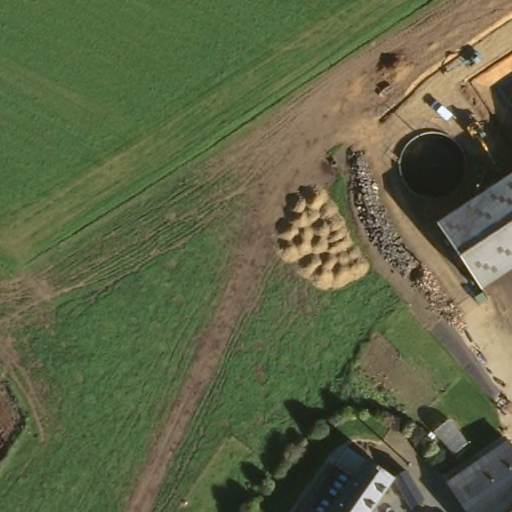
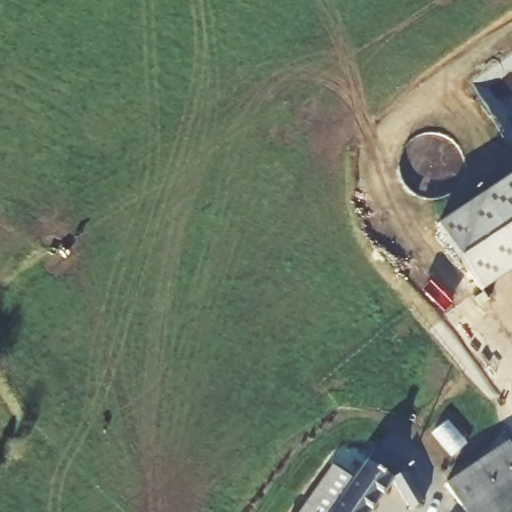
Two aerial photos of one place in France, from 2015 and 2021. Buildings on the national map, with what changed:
unchanged [(468,258),(441,216),(512,171),(512,272),(486,288),(468,258)]
unchanged [(388,481),(365,512),(300,512),(347,450),(388,481)]
unchanged [(452,487),(512,457),(512,512),(470,512),(454,491),(452,487)]
unchanged [(400,509),(388,481),(400,475),(414,502),(400,509)]
unchanged [(470,512),(465,512),(454,491),(470,512)]

